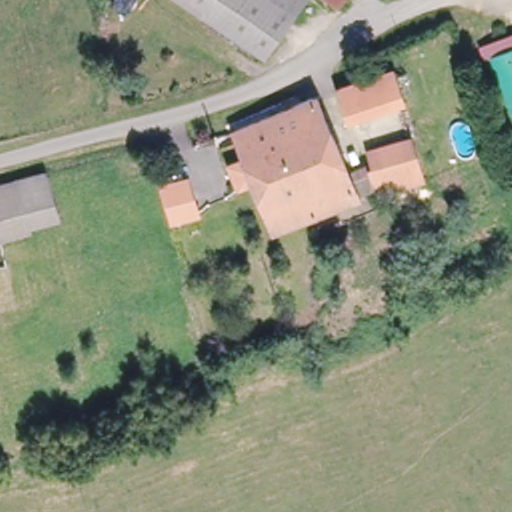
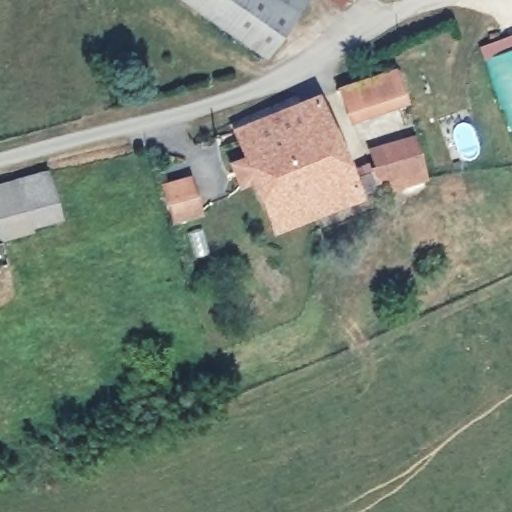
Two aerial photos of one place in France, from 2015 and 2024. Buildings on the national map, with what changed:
unchanged [(264,54),(193,0),(304,0),(264,54)]
unchanged [(341,5),(334,0),(345,0),(341,5)]
unchanged [(512,24),(512,133),(473,39),(512,24)]
unchanged [(349,118),(337,80),(389,64),(401,102),(349,118)]
unchanged [(215,168),(227,162),(218,139),(303,105),(332,178),(352,170),(363,198),(255,238),(236,186),(223,190),(215,168)]
unchanged [(367,168),(366,148),(423,131),(434,170),(378,188),(367,168)]
unchanged [(60,217),(0,232),(0,178),(46,163),(60,217)]
unchanged [(184,181),(194,213),(168,220),(167,215),(159,188),(172,185),(184,181)]

